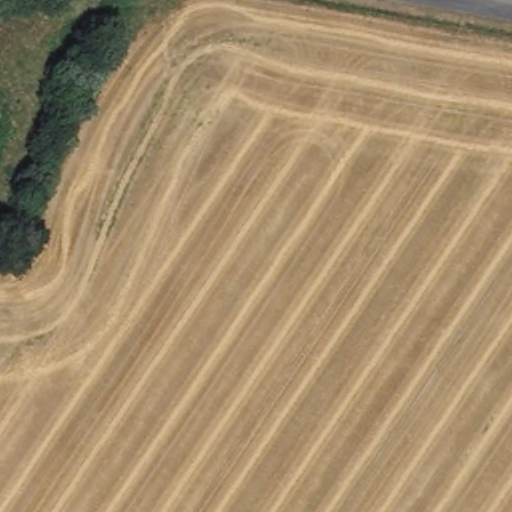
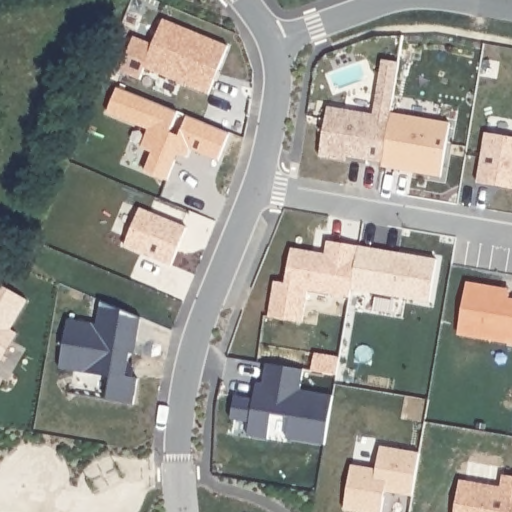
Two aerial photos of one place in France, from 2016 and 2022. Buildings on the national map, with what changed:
new [(153,44),(163,19),(227,44),(207,95),(146,67),(140,81),(120,72),(134,37),(153,44)]
new [(373,114),(383,61),(398,62),(391,114),(450,124),(443,176),(319,157),(327,107),(373,114)]
new [(512,188),(478,182),(485,134),(512,137),(512,188)]
new [(187,227),(171,267),(124,247),(140,207),(187,227)]
new [(350,289),(349,298),(307,291),(301,323),(268,317),(274,282),(285,284),(291,249),(311,252),(311,257),(324,260),(327,242),(358,247),(350,289)]
new [(437,258),(431,301),(352,288),(359,246),(437,258)]
new [(311,252),(325,255),(324,260),(311,257),(311,252)]
new [(465,283),(499,289),(509,291),(508,295),(507,300),(512,300),(512,343),(456,334),(465,283)]
new [(28,302),(12,330),(17,333),(0,362),(0,286),(28,302)]
new [(98,322),(100,302),(141,320),(137,356),(130,355),(126,377),(136,378),(134,405),(104,401),(106,377),(59,371),(65,320),(98,322)]
new [(253,397),(256,382),(264,384),(267,363),(305,370),(300,391),(332,397),(325,447),(286,441),(290,420),(271,416),(266,440),(248,437),(250,422),(230,419),(235,396),(253,397)]
new [(383,492),(380,512),(355,512),(342,510),(350,465),(375,469),(380,447),(418,453),(410,496),(383,492)]
new [(501,488),(503,475),(512,476),(512,512),(456,512),(461,481),(501,488)]

